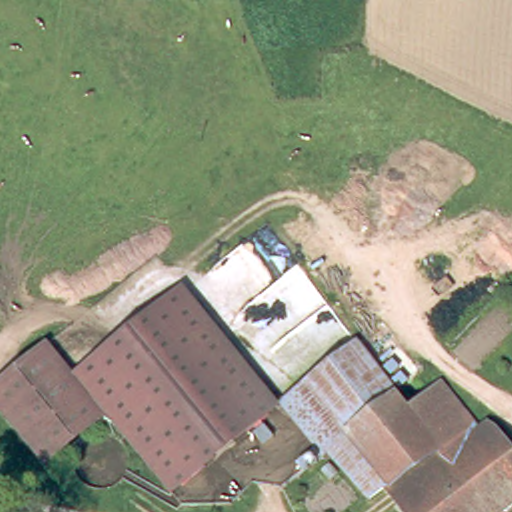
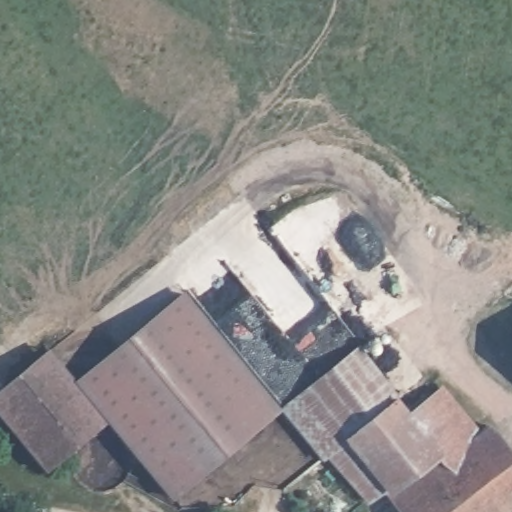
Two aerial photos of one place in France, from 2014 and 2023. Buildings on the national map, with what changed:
unchanged [(280,400),(282,402),(169,492),(75,374),(188,285),(245,357),(280,400)]
unchanged [(104,415),(43,463),(0,409),(0,381),(48,343),(104,415)]
unchanged [(343,434),(384,485),(368,497),(326,449),(322,452),(304,430),(282,402),(355,343),(393,393),(343,434)]
unchanged [(471,432),(486,420),(512,455),(512,499),(495,512),(491,512),(459,467),(441,442),(387,483),(384,485),(343,434),(393,393),(428,435),(457,413),(471,432)]
unchanged [(387,483),(441,442),(459,467),(491,512),(407,512),(387,483)]

